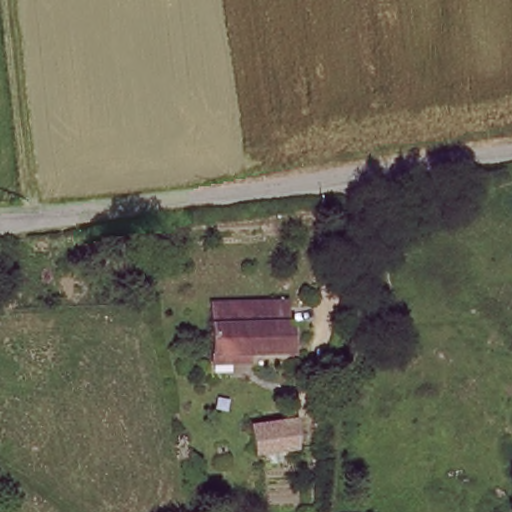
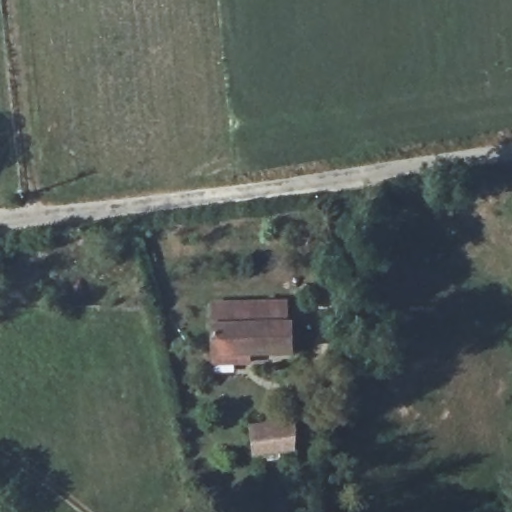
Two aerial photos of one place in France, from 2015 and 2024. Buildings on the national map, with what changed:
unchanged [(214,365),(214,355),(213,305),(284,303),(284,325),(289,325),(291,353),(249,354),(249,365),(214,365)]
unchanged [(256,454),(251,430),(293,423),(292,448),(256,454)]

